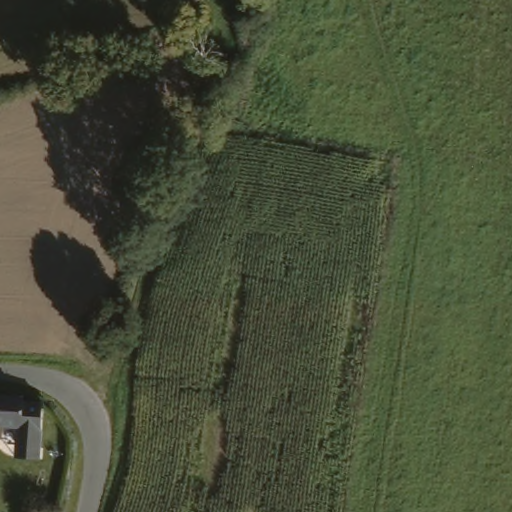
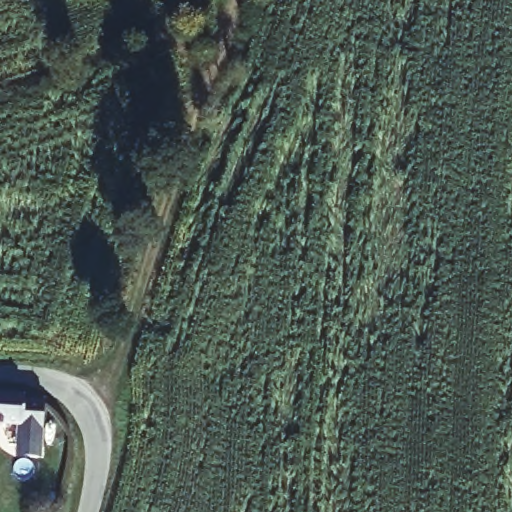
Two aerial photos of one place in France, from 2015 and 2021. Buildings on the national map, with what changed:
unchanged [(16,461),(15,420),(0,420),(0,388),(21,389),(21,393),(42,394),(40,440),(39,462),(16,461)]

